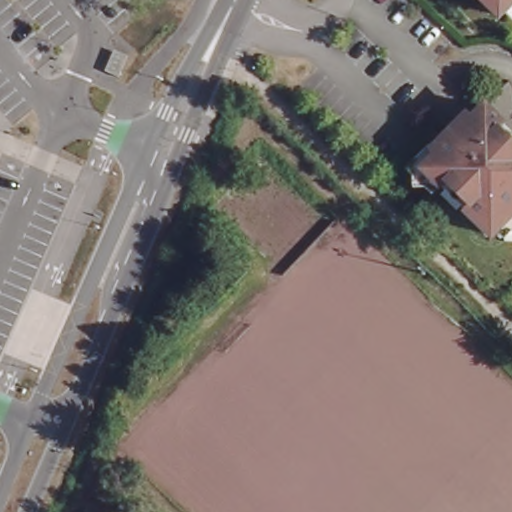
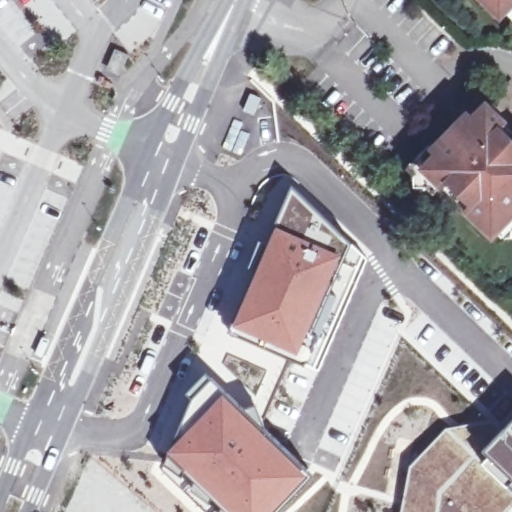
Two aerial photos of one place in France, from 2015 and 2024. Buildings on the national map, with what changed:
unchanged [(502,10),(494,17),(476,0),(511,0),(502,10)]
unchanged [(502,10),(511,0),(512,0),(512,16),(509,18),(502,10)]
unchanged [(405,202),(406,190),(399,184),(421,161),(423,162),(451,134),(455,138),(474,118),(472,116),(482,105),(487,109),(501,94),(506,102),(507,111),(507,116),(512,116),(512,204),(498,220),(504,226),(491,240),(484,247),(456,221),(461,216),(439,195),(434,200),(430,197),(422,206),(416,201),(405,202)]
new [(292,186),(352,241),(344,254),(274,224),(292,186)]
unchanged [(512,243),(503,243),(499,247),(497,246),(491,240),(504,226),(498,220),(512,204),(512,243)]
new [(274,224),(344,254),(319,312),(296,360),(229,328),(274,224)]
new [(319,312),(344,254),(352,241),(366,255),(336,312),(334,317),(331,317),(308,365),(296,360),(319,312)]
new [(190,395),(207,372),(225,388),(252,412),(313,473),(275,512),(226,512),(164,452),(176,429),(190,395)]
new [(479,451),(512,417),(512,493),(498,478),(479,451)]
new [(411,460),(443,428),(467,422),(473,435),(469,438),(479,451),(498,478),(512,493),(512,506),(507,512),(399,512),(407,466),(411,460)]

